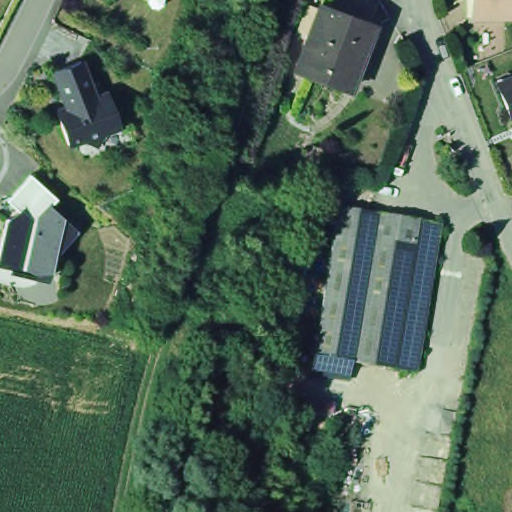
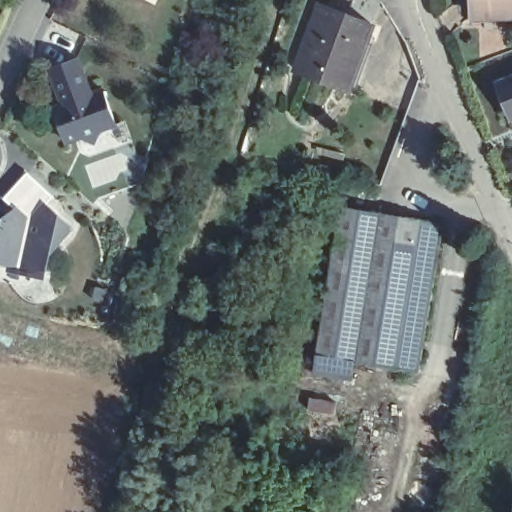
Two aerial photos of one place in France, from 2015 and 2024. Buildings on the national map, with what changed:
unchanged [(483,0),(512,0),(512,13),(483,13),(483,0)]
unchanged [(375,20),(351,85),(346,83),(295,69),(297,65),(321,2),(370,19),(375,20)]
unchanged [(81,55),(95,93),(104,90),(120,129),(106,132),(99,146),(85,139),(65,145),(53,111),(61,107),(46,69),(81,55)]
unchanged [(512,71),(512,91),(506,73),(512,71)]
unchanged [(49,256),(45,278),(10,272),(10,267),(0,264),(0,240),(5,214),(11,207),(6,198),(30,173),(54,196),(50,200),(73,229),(49,256)]
unchanged [(321,352),(349,206),(450,226),(421,372),(321,352)]

